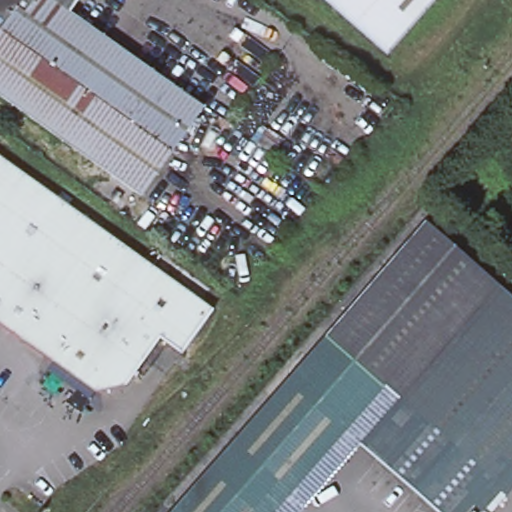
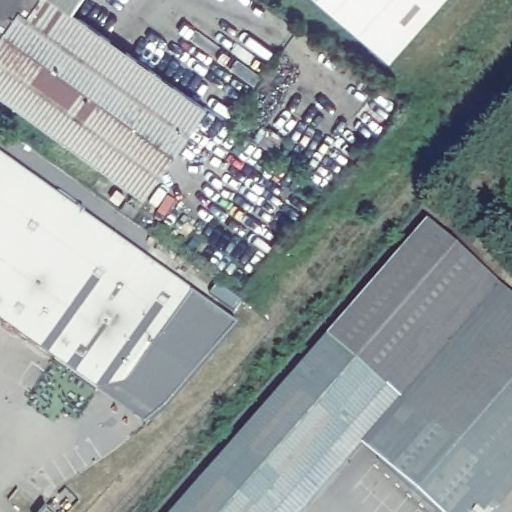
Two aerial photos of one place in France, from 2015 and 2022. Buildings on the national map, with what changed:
unchanged [(207,103),(145,191),(0,88),(0,0),(64,0),(69,4),(207,103)]
unchanged [(64,0),(72,0),(69,4),(64,0)]
unchanged [(322,0),(434,0),(383,55),(322,0)]
unchanged [(165,325),(125,382),(94,388),(0,320),(0,154),(212,305),(186,340),(165,325)]
unchanged [(512,291),(512,469),(500,483),(403,398),(360,449),(308,512),(165,512),(426,215),(512,291)]
new [(125,382),(165,325),(186,340),(212,305),(240,325),(167,408),(144,425),(94,388),(125,382)]
unchanged [(497,512),(477,512),(475,509),(472,512),(434,512),(360,449),(403,398),(500,483),(512,469),(512,495),(497,512)]

